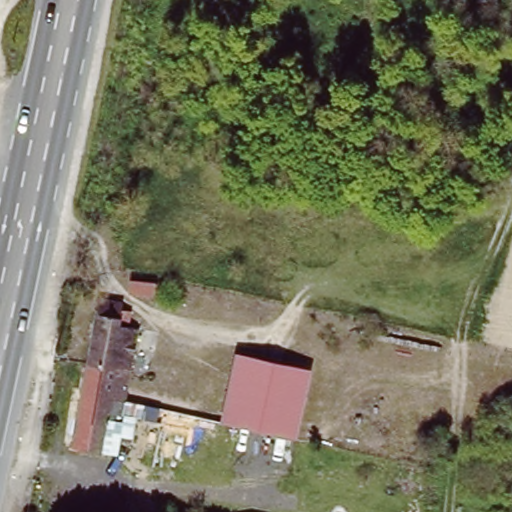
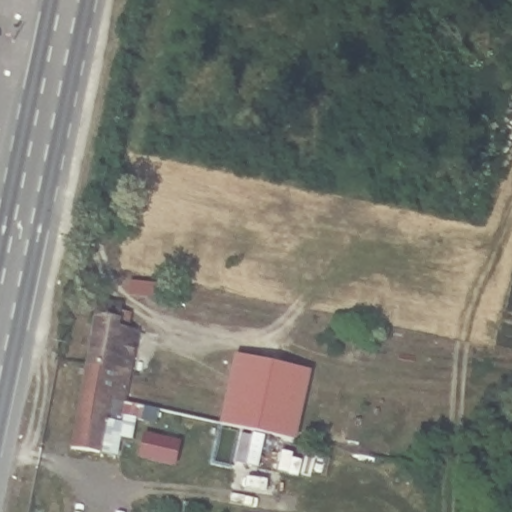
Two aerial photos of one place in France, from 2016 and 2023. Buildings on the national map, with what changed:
unchanged [(133,372),(86,364),(99,298),(128,303),(126,311),(135,313),(132,327),(143,329),(133,372)]
unchanged [(248,427),(229,424),(243,356),(261,360),(248,427)]
unchanged [(248,427),(261,360),(293,366),(313,370),(299,437),(281,434),(248,427)]
unchanged [(69,447),(75,417),(83,382),(86,364),(133,372),(128,401),(126,406),(115,457),(98,453),(69,447)]

